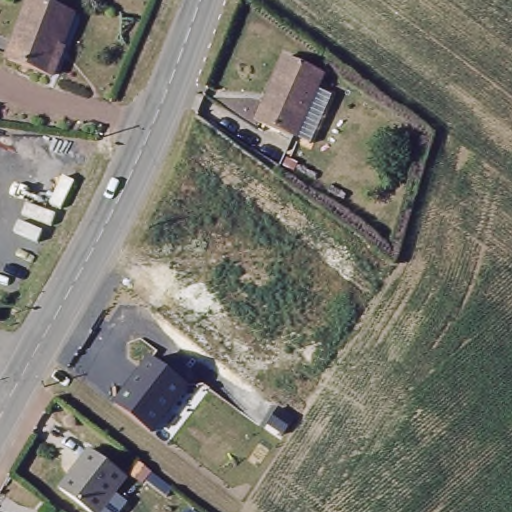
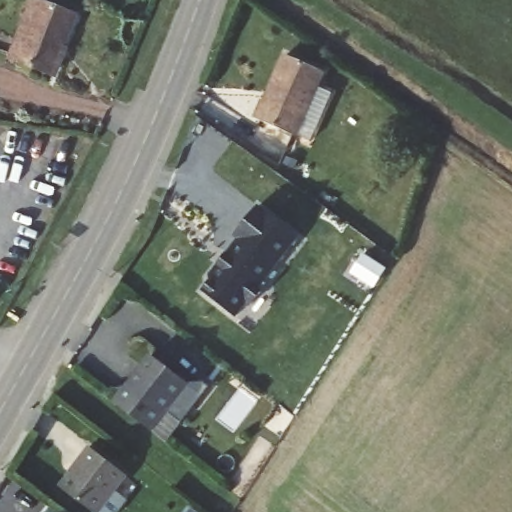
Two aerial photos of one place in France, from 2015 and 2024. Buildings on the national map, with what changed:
unchanged [(59,52),(65,54),(57,74),(11,59),(19,35),(30,2),(71,16),(59,52)]
unchanged [(290,48),(322,69),(310,87),(325,96),(297,139),(250,110),(290,48)]
new [(297,237),(259,287),(262,291),(250,306),(245,303),(235,317),(201,291),(209,283),(209,275),(236,239),(232,236),(257,205),(297,237)]
unchanged [(195,391),(160,437),(112,402),(149,356),(195,391)]
unchanged [(76,465),(75,464),(88,447),(125,476),(97,512),(90,512),(58,487),(76,465)]

